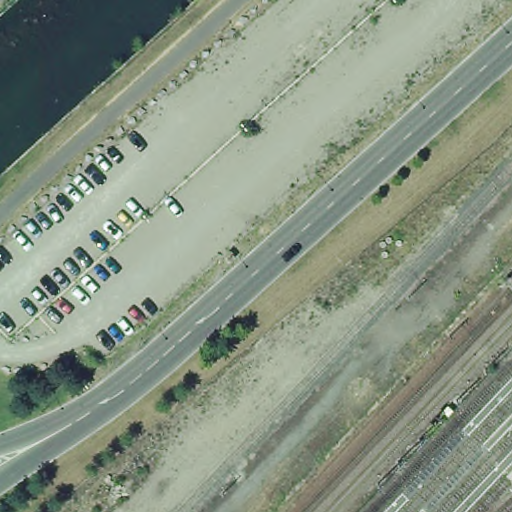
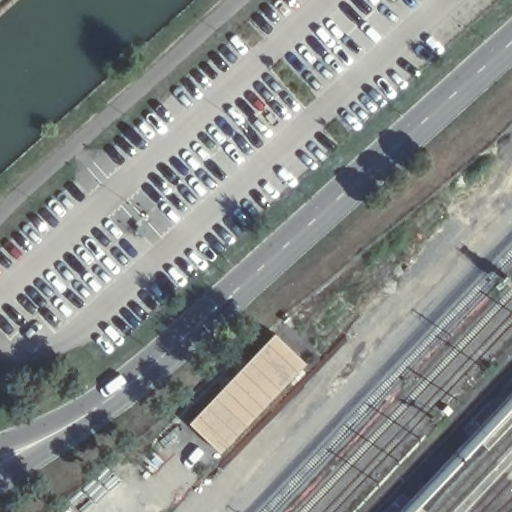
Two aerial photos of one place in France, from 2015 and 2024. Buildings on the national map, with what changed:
new [(275,333),(306,362),(221,452),(189,422),(275,333)]

